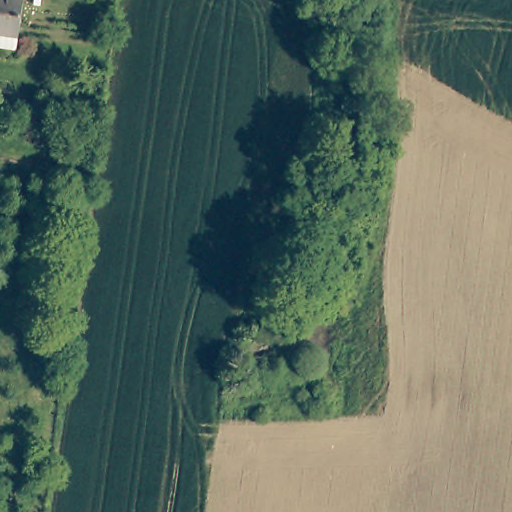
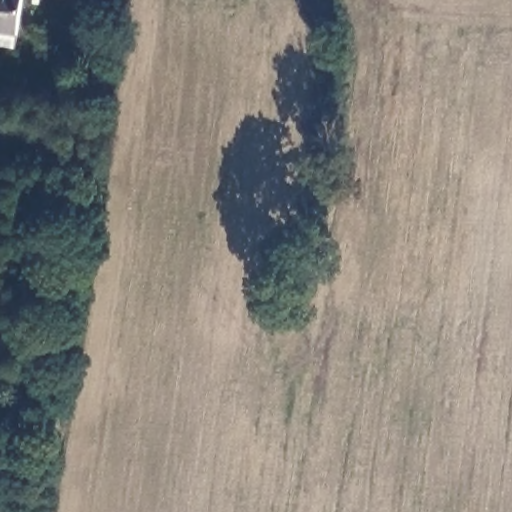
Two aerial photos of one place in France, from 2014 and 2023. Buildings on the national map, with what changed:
unchanged [(19,37),(16,49),(0,47),(0,0),(23,0),(19,37)]

